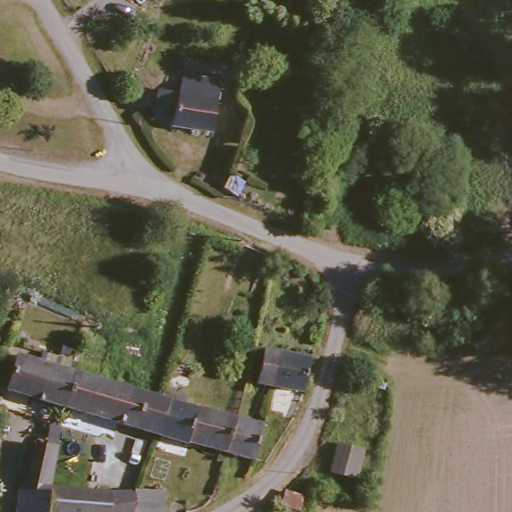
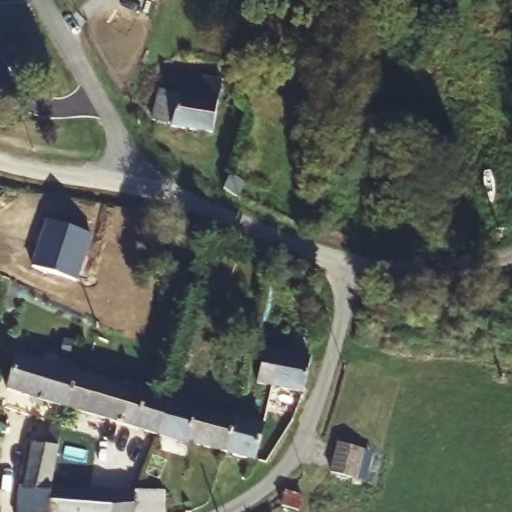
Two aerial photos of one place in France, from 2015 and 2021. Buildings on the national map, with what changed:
unchanged [(166,117),(167,87),(195,89),(195,74),(221,76),(230,77),(228,106),(227,123),(189,121),(186,119),(166,117)]
unchanged [(251,185),(242,200),(229,193),(236,178),(251,185)]
new [(49,218),(92,233),(77,279),(34,264),(49,218)]
unchanged [(258,379),(267,350),(285,354),(315,361),(308,390),(278,384),(258,379)]
unchanged [(0,390),(0,374),(5,356),(67,373),(57,407),(0,390)]
unchanged [(172,364),(170,370),(164,368),(166,361),(172,364)]
unchanged [(154,397),(144,432),(143,433),(57,407),(67,373),(142,393),(154,397)]
unchanged [(176,442),(143,433),(144,432),(154,397),(185,406),(176,442)]
unchanged [(187,407),(196,410),(219,417),(211,452),(176,442),(185,406),(187,407)]
unchanged [(241,459),(211,452),(219,417),(250,425),(271,431),(261,463),(241,459)]
unchanged [(362,452),(352,481),(328,472),(339,444),(362,452)]
unchanged [(19,495),(26,445),(67,454),(66,470),(89,474),(87,491),(164,493),(162,512),(18,512),(19,495)]
unchanged [(302,503),(299,512),(286,512),(283,511),(287,497),(302,503)]

